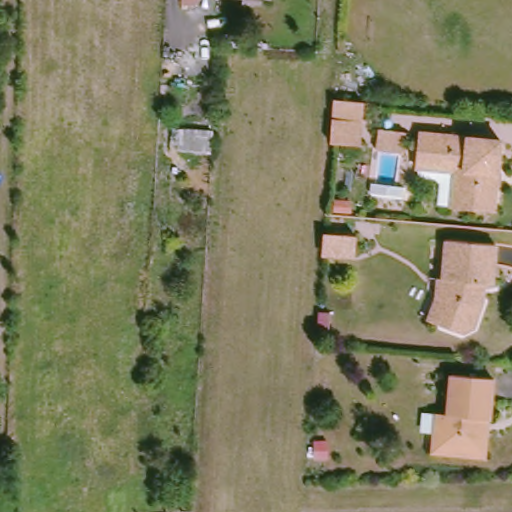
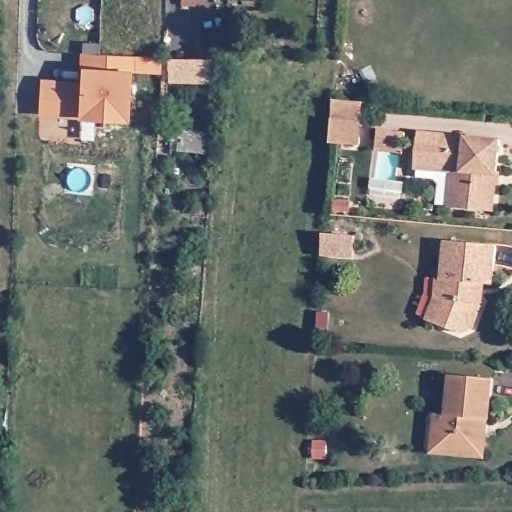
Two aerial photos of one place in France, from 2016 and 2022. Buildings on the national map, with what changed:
new [(40,80),(82,81),(82,53),(135,55),(135,68),(132,69),(129,119),(80,117),(40,116),(40,80)]
unchanged [(335,129),(338,105),(365,108),(362,131),(335,129)]
unchanged [(442,189),(434,180),(416,179),(417,167),(420,129),(502,136),(496,209),(452,205),(441,204),(442,189)]
unchanged [(485,290),(484,307),(489,312),(482,332),(467,338),(452,333),(443,322),(452,302),(452,283),(447,283),(450,245),(500,249),(497,290),(485,290)]
unchanged [(484,422),(482,436),(487,436),(485,460),(442,457),(444,422),(448,415),(450,380),(493,383),(490,422),(484,422)]

